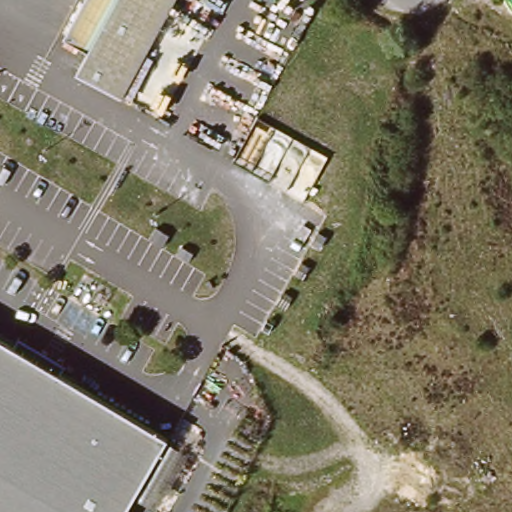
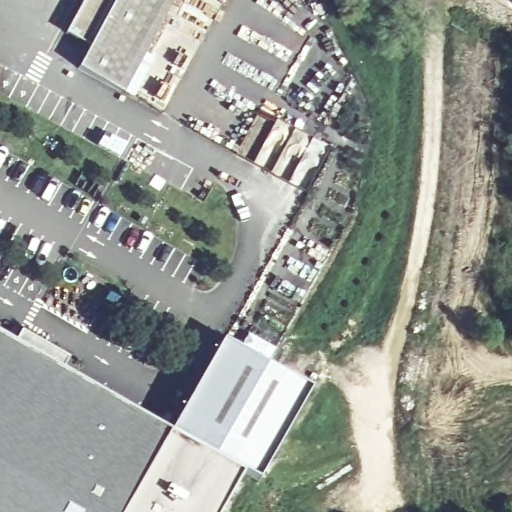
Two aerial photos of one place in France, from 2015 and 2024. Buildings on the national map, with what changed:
unchanged [(68,34),(87,0),(118,0),(93,47),(68,34)]
unchanged [(93,47),(118,0),(175,0),(126,94),(81,69),(93,47)]
unchanged [(129,512),(0,512),(0,331),(175,432),(129,512)]
new [(257,481),(175,432),(172,430),(222,346),(225,340),(310,388),(257,481)]

